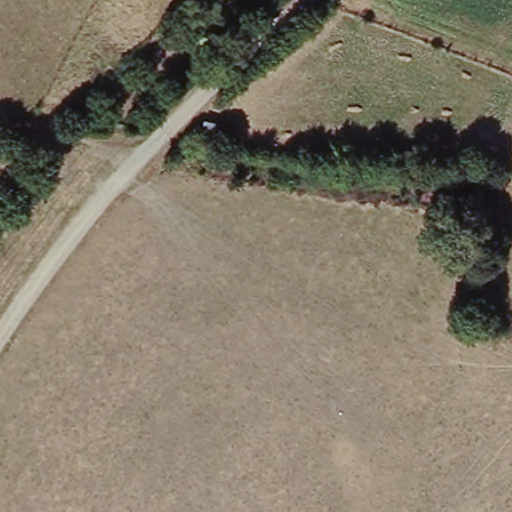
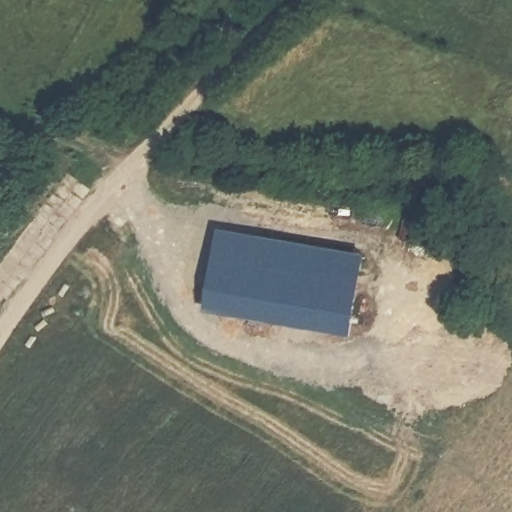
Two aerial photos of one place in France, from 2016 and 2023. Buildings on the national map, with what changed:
demolished [(276,109),(293,113),(289,133),(272,129),(276,109)]
new [(367,257),(352,337),(207,312),(219,231),(367,257)]

